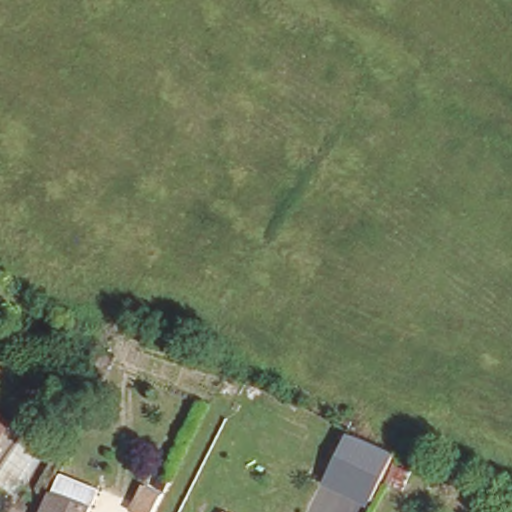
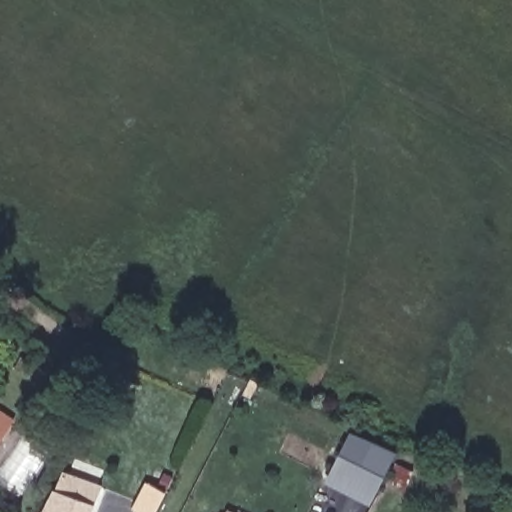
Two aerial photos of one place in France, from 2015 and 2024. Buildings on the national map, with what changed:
unchanged [(15,368),(22,356),(43,370),(36,381),(15,368)]
unchanged [(4,445),(0,450),(0,408),(19,421),(4,445)]
unchanged [(321,481),(347,431),(393,451),(366,503),(321,481)]
unchanged [(389,463),(409,472),(400,490),(380,480),(389,463)]
unchanged [(96,499),(91,512),(41,512),(53,484),(96,499)]
unchanged [(156,512),(137,512),(149,488),(165,496),(156,512)]

